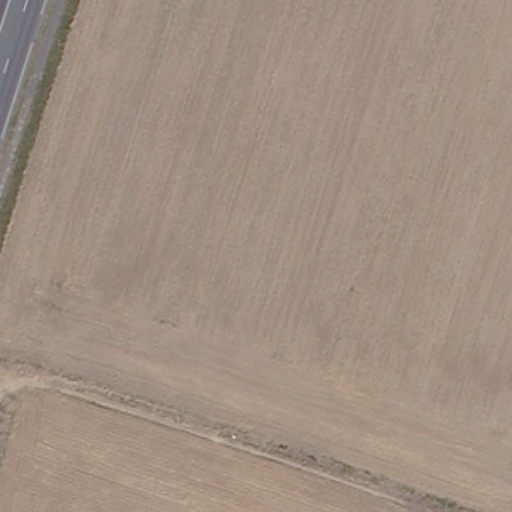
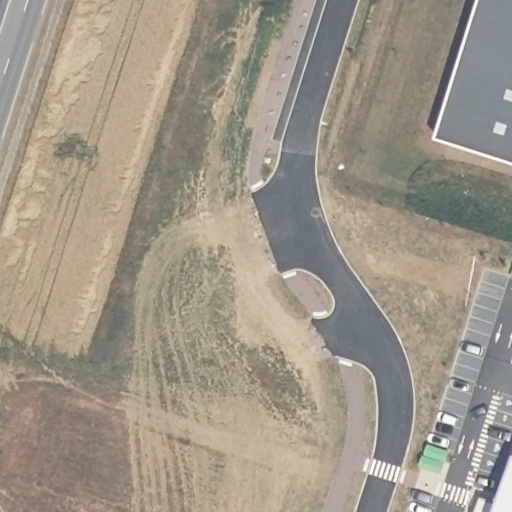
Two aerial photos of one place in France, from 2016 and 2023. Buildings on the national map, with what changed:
new [(485,0),(512,0),(512,160),(439,137),(485,0)]
new [(512,512),(498,512),(512,468),(512,512)]

